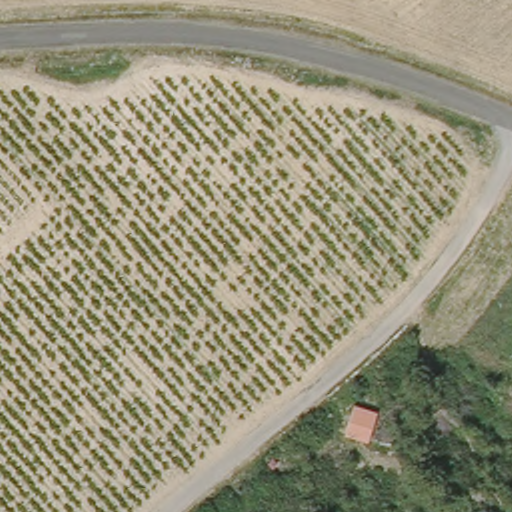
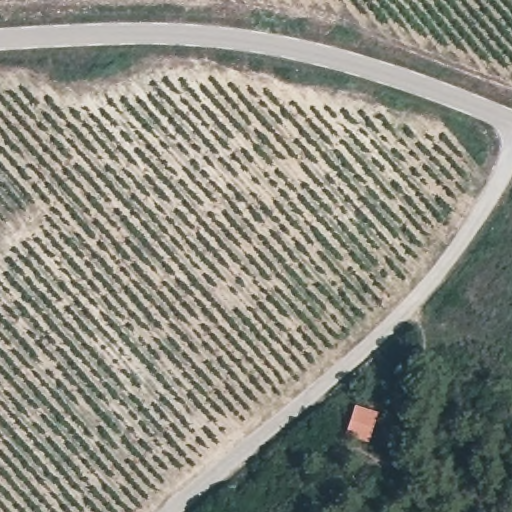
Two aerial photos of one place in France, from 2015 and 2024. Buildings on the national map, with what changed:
unchanged [(377,411),(371,440),(351,435),(357,407),(377,411)]

